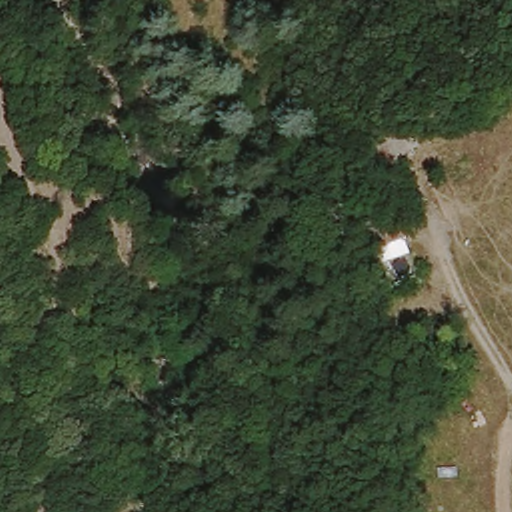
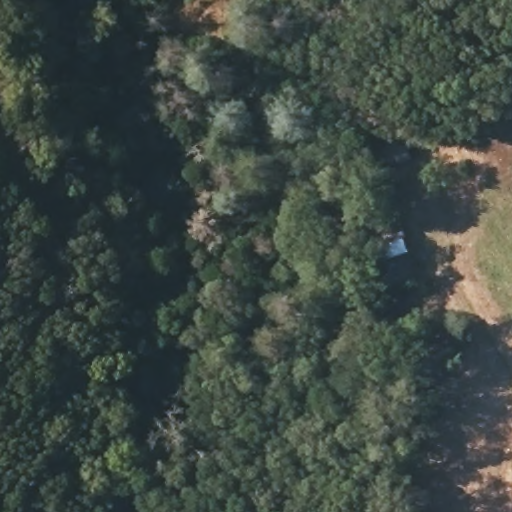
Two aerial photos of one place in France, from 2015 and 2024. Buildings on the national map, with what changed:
unchanged [(395,219),(402,242),(375,251),(367,226),(395,219)]
unchanged [(410,278),(393,284),(386,264),(401,259),(410,278)]

